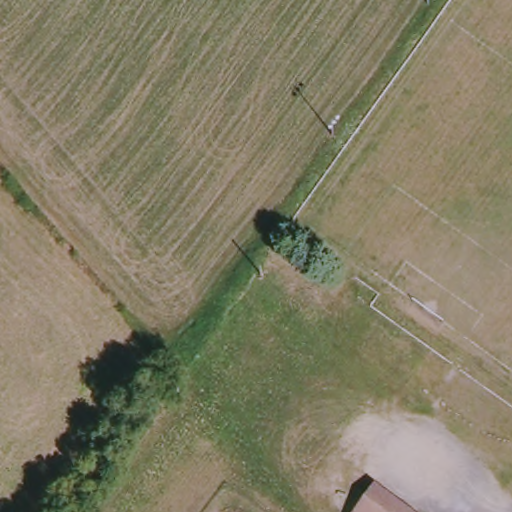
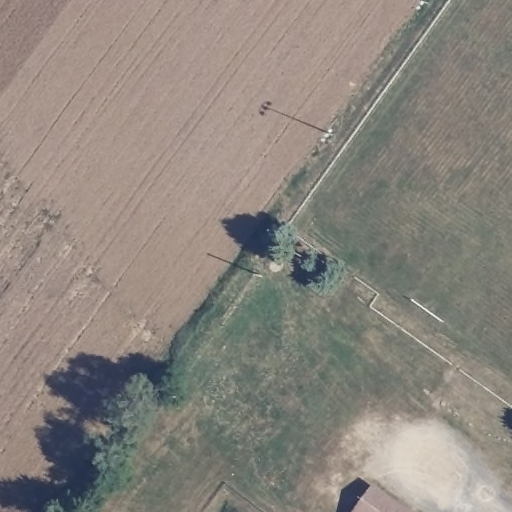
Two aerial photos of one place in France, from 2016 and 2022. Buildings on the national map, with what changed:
unchanged [(370,488),(403,512),(353,512),(370,488)]

